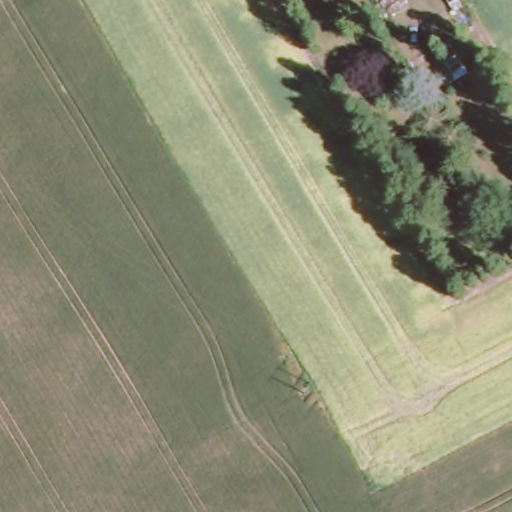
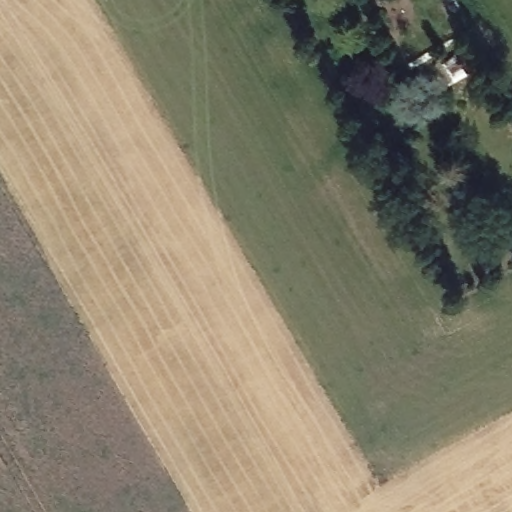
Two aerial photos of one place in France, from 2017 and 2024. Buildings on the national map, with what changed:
unchanged [(452,14),(444,0),(457,0),(462,9),(452,14)]

